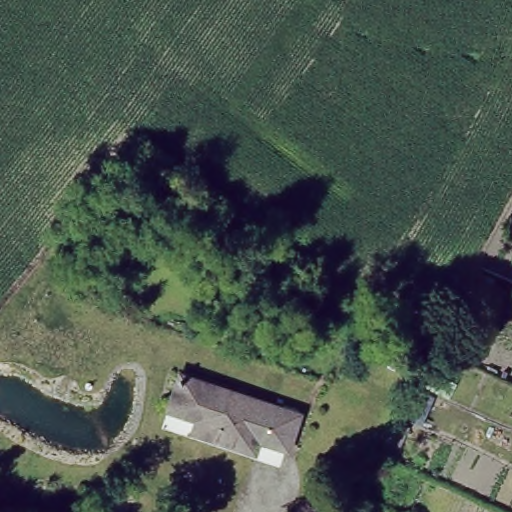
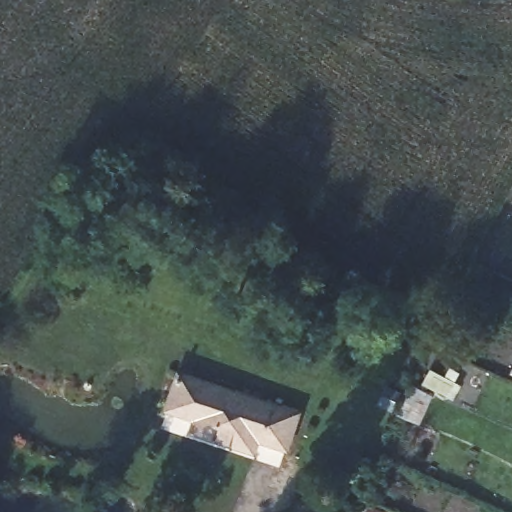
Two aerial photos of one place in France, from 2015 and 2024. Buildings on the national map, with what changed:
unchanged [(286,442),(257,432),(252,445),(192,425),(197,412),(167,403),(180,368),(297,407),(286,442)]

